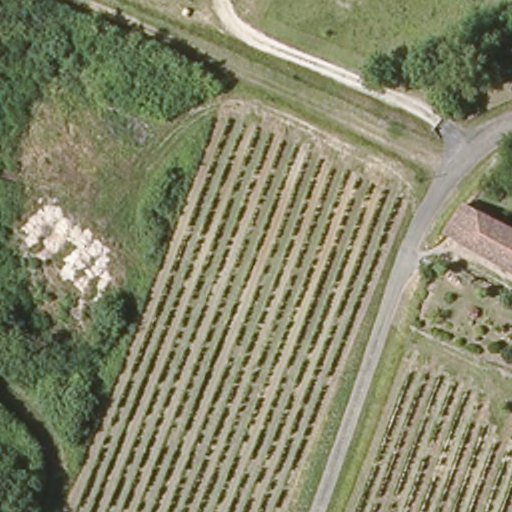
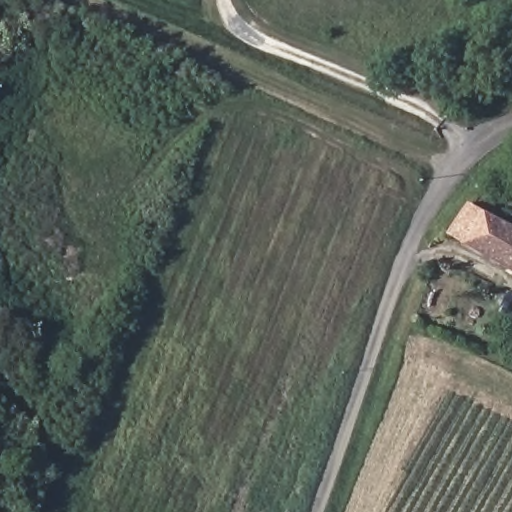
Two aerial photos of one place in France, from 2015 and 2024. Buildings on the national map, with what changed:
unchanged [(473,200),(512,220),(512,266),(453,234),(473,200)]

